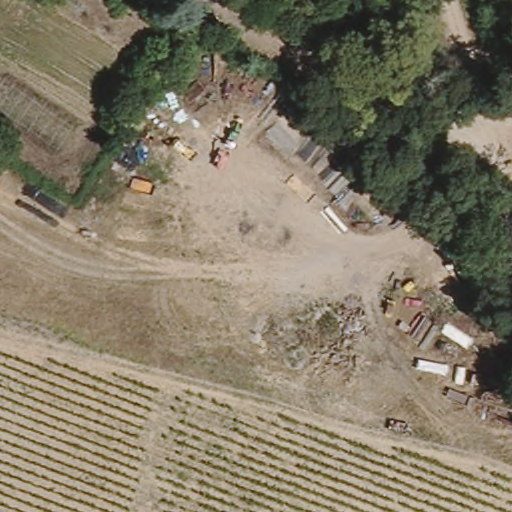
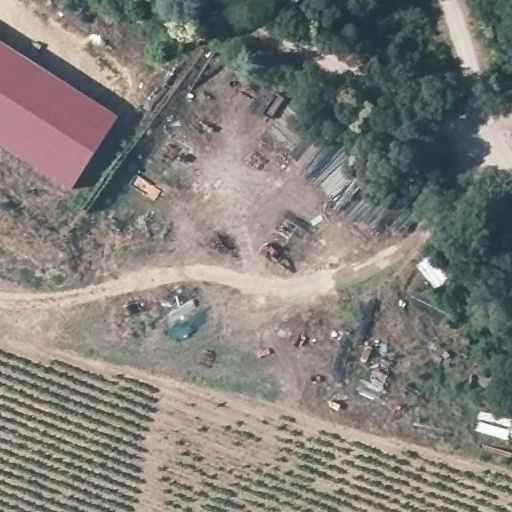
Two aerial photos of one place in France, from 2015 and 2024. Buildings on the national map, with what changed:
new [(69,192),(0,148),(0,40),(119,116),(69,192)]

